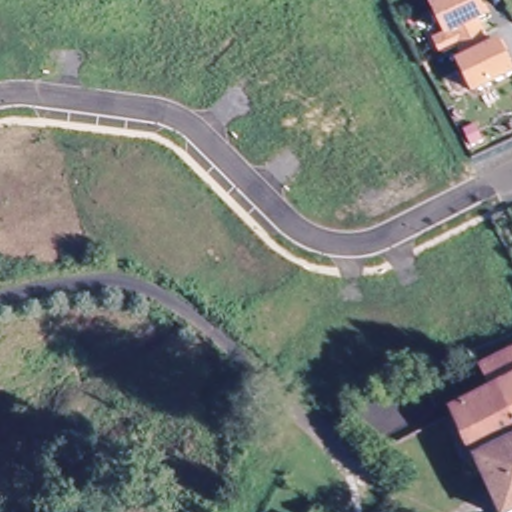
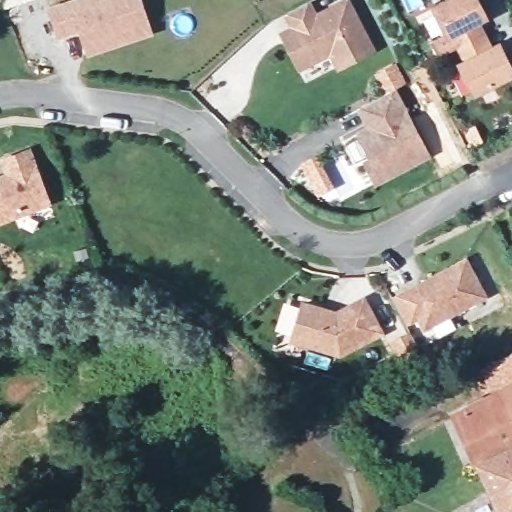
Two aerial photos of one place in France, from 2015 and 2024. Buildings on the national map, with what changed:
new [(87,55),(79,32),(57,39),(47,7),(68,0),(143,0),(153,31),(87,55)]
new [(339,70),(331,55),(299,71),(277,32),(290,26),(284,13),(310,0),(312,0),(317,11),(338,0),(350,0),(377,50),(339,70)]
unchanged [(476,21),(490,49),(498,44),(512,72),(512,74),(474,93),(460,64),(465,61),(452,34),(447,35),(433,7),(447,0),(476,0),(485,17),(476,21)]
new [(433,155),(375,186),(349,141),(359,137),(356,132),(366,127),(356,107),(396,86),(433,155)]
unchanged [(474,126),(482,141),(471,146),(464,132),(474,126)]
unchanged [(5,174),(0,163),(0,158),(32,147),(52,204),(0,224),(0,175),(5,174)]
new [(488,300),(419,337),(415,328),(409,330),(391,296),(466,255),(488,300)]
new [(384,335),(341,358),(289,342),(301,298),(336,310),(364,295),(384,335)]
unchanged [(477,365),(508,349),(512,347),(512,425),(489,388),(477,365)]
unchanged [(512,441),(474,458),(452,408),(489,388),(512,425),(512,441)]
unchanged [(473,458),(474,458),(512,441),(512,511),(510,512),(498,512),(473,458)]

